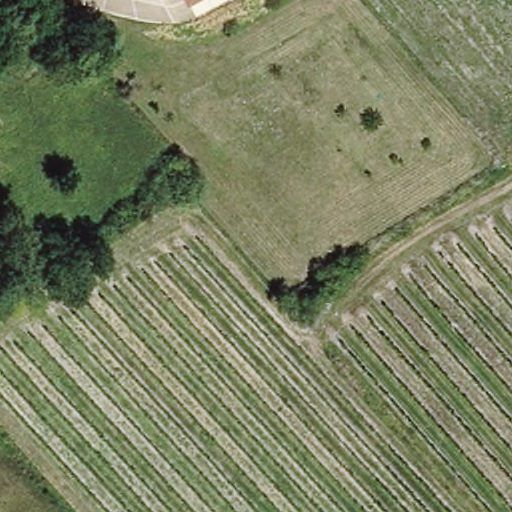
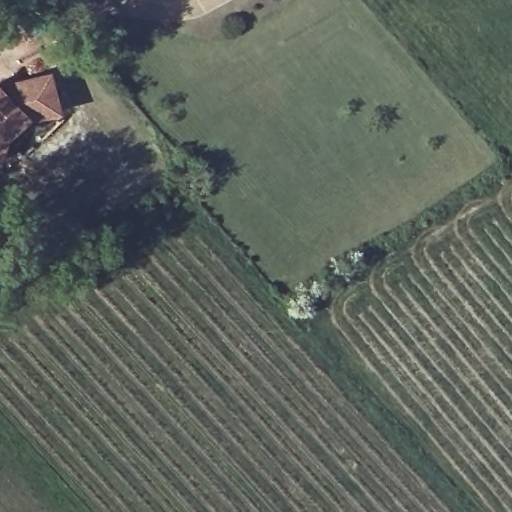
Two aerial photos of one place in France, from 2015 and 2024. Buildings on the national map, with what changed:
new [(50,74),(61,118),(30,125),(14,101),(15,101),(9,84),(50,74)]
new [(14,101),(30,125),(0,159),(0,87),(14,101)]

